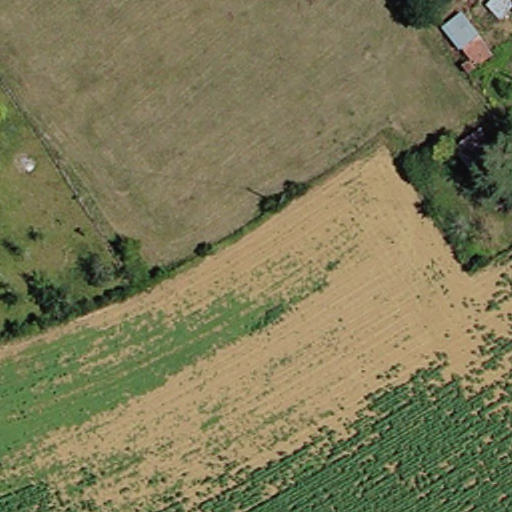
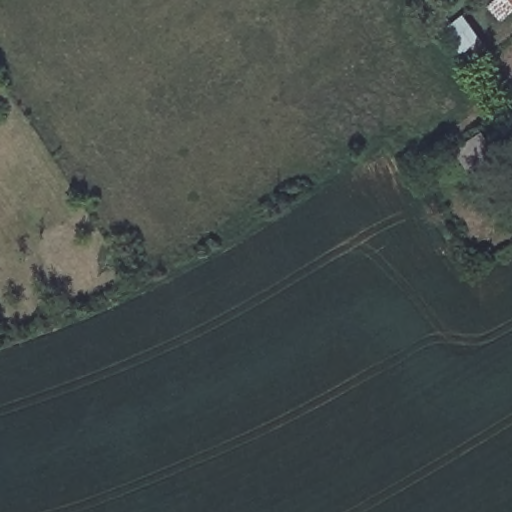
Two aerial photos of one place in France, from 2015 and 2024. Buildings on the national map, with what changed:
unchanged [(488,63),(476,71),(466,59),(475,53),(454,27),(457,24),(467,17),(496,53),(486,60),(488,63)]

